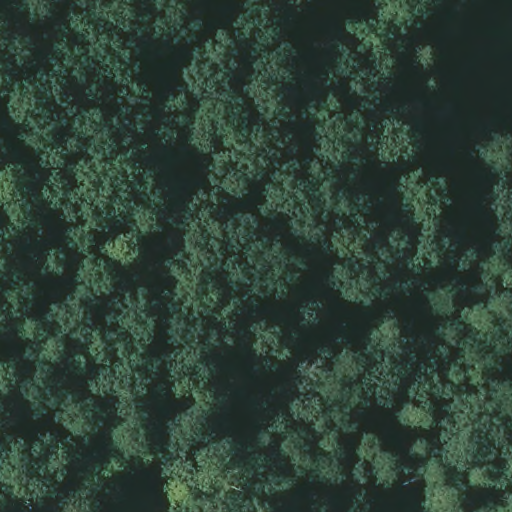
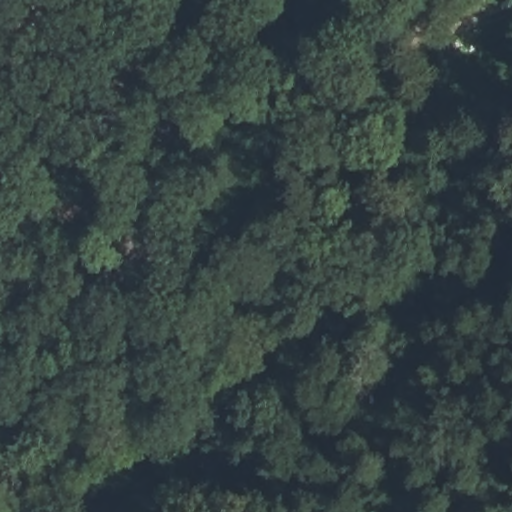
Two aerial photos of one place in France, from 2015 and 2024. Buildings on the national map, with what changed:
[]

